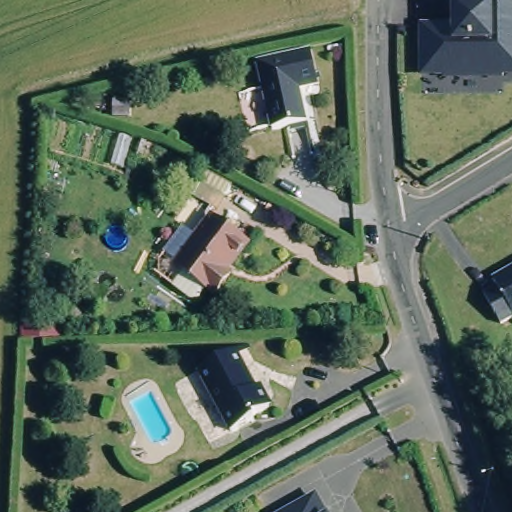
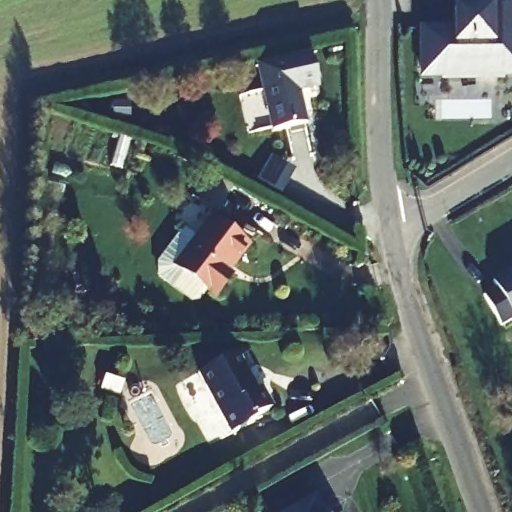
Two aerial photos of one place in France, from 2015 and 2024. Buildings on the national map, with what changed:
unchanged [(420,26),(455,26),(455,4),(475,4),(475,0),(512,0),(512,76),(420,76),(420,26)]
unchanged [(311,51),(318,82),(297,86),(305,120),(272,127),(258,62),(311,51)]
unchanged [(231,270),(215,292),(205,285),(198,295),(192,296),(173,283),(185,270),(174,262),(210,214),(236,233),(245,221),(257,229),(247,241),(227,267),(231,270)]
unchanged [(500,283),(496,276),(512,268),(512,317),(505,321),(487,291),(500,283)]
unchanged [(235,353),(256,391),(260,389),(271,408),(251,419),(253,422),(230,435),(197,374),(235,353)]
unchanged [(329,512),(284,512),(317,493),(329,512)]

